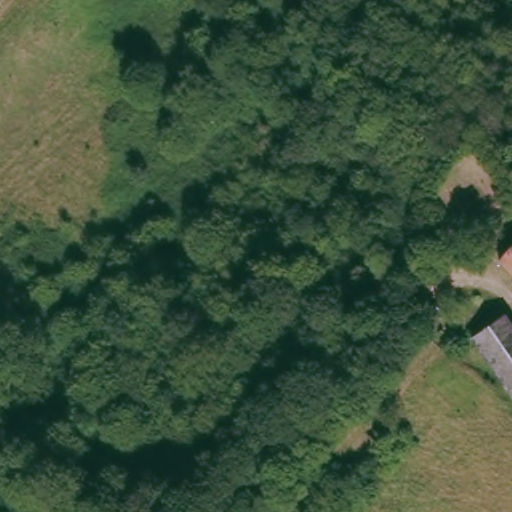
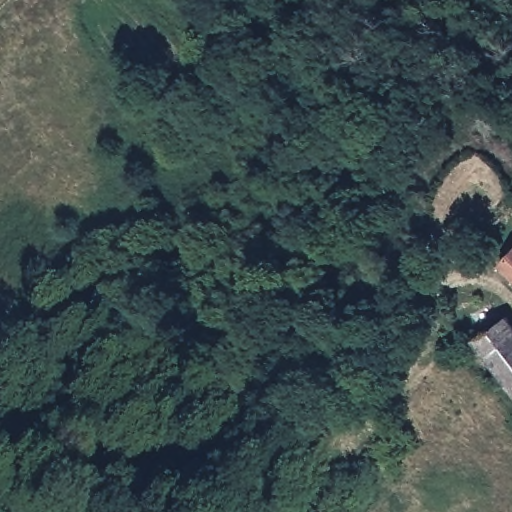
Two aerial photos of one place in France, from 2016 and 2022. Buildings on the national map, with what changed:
unchanged [(498,265),(512,248),(512,278),(498,265)]
unchanged [(476,338),(485,330),(504,315),(512,326),(512,394),(476,338)]

